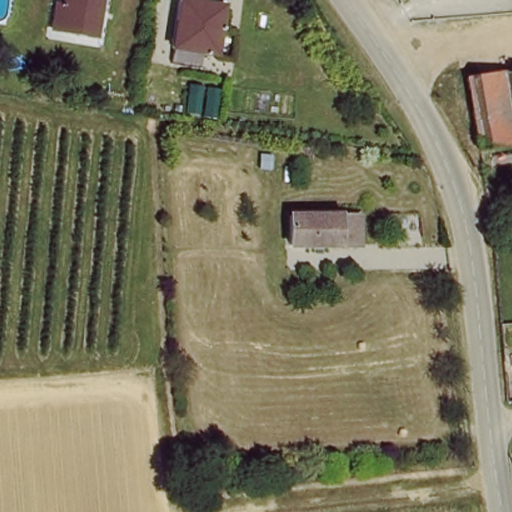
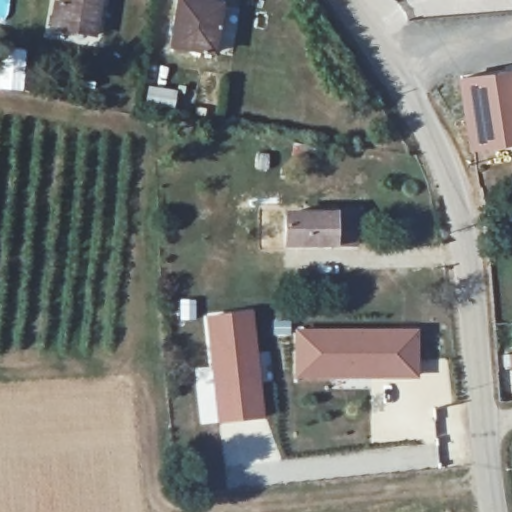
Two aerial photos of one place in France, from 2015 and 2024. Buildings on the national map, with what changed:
unchanged [(92,38),(57,32),(46,32),(51,4),(61,6),(61,0),(97,0),(92,38)]
unchanged [(178,0),(222,6),(216,55),(171,49),(178,0)]
unchanged [(464,80),(512,73),(512,137),(474,142),(464,80)]
unchanged [(280,241),(279,210),(349,210),(349,242),(280,241)]
new [(207,318),(254,312),(264,420),(218,425),(207,318)]
new [(415,334),(415,376),(370,375),(370,365),(333,366),(334,376),(297,376),(298,333),(415,334)]

